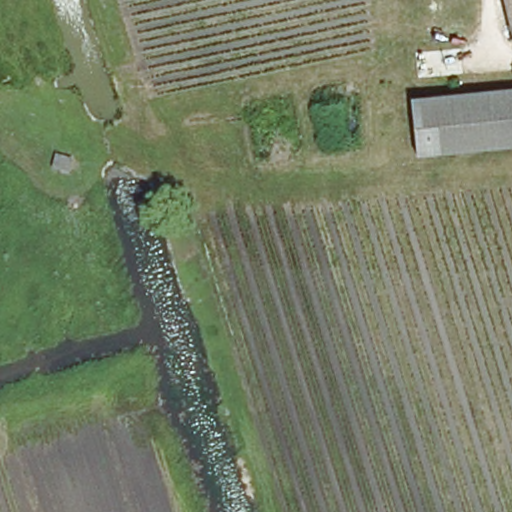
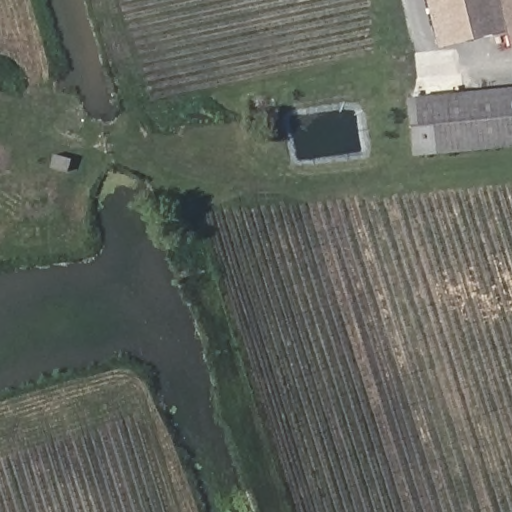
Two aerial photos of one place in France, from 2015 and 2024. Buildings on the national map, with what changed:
new [(510,30),(440,47),(429,0),(503,0),(510,30)]
unchanged [(512,39),(503,0),(512,0),(512,39)]
unchanged [(411,104),(512,92),(512,151),(411,161),(406,116),(405,104),(411,104)]

